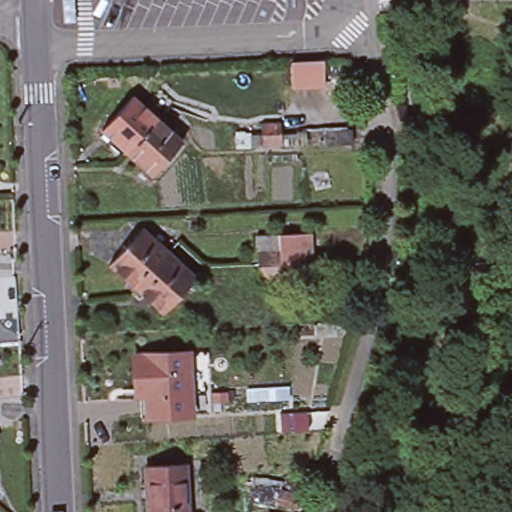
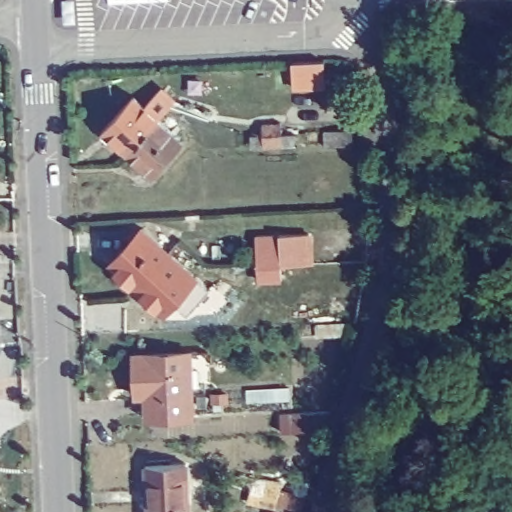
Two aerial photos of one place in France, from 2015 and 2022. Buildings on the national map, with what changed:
unchanged [(325,58),(325,83),(293,85),(292,60),(325,58)]
unchanged [(126,150),(101,128),(131,94),(158,118),(126,150)]
unchanged [(182,139),(152,173),(126,150),(158,118),(182,139)]
unchanged [(261,133),(260,120),(280,119),(280,132),(292,131),(292,142),(281,143),(261,144),(261,133)]
unchanged [(353,129),(354,144),(326,145),(325,130),(353,129)]
unchanged [(110,263),(142,226),(168,249),(135,286),(110,263)]
unchanged [(258,273),(257,259),(256,229),(310,227),(310,256),(280,257),(280,258),(281,272),(258,273)]
unchanged [(196,275),(164,311),(135,286),(168,249),(196,275)]
unchanged [(190,352),(190,360),(201,359),(203,393),(191,393),(192,414),(146,416),(141,416),(140,395),(135,395),(135,388),(134,355),(190,352)]
unchanged [(181,463),(184,512),(143,512),(141,465),(181,463)]
unchanged [(281,479),(280,490),(305,499),(300,512),(289,512),(246,503),(250,474),(281,479)]

